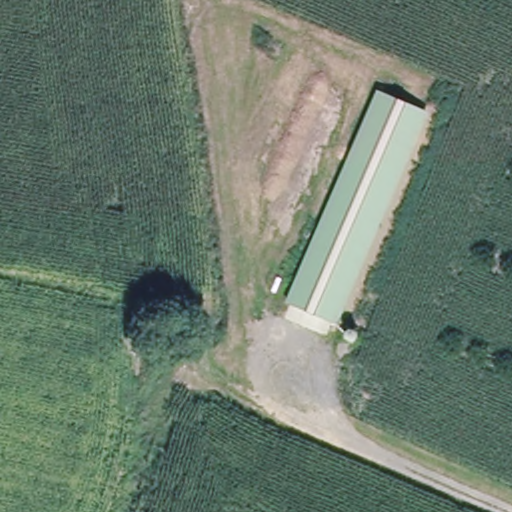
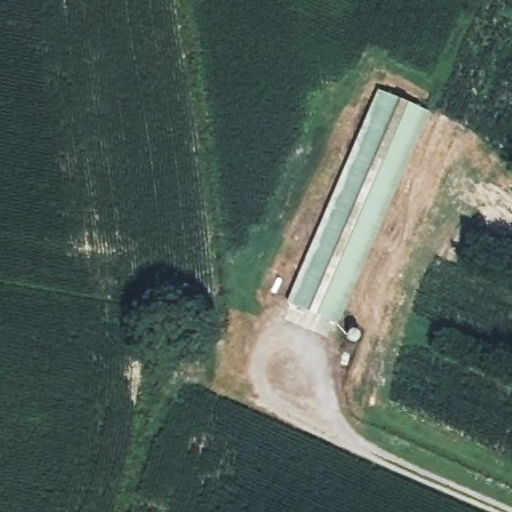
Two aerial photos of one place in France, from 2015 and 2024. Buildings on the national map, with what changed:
unchanged [(431,111),(339,325),(289,302),(380,89),(431,111)]

